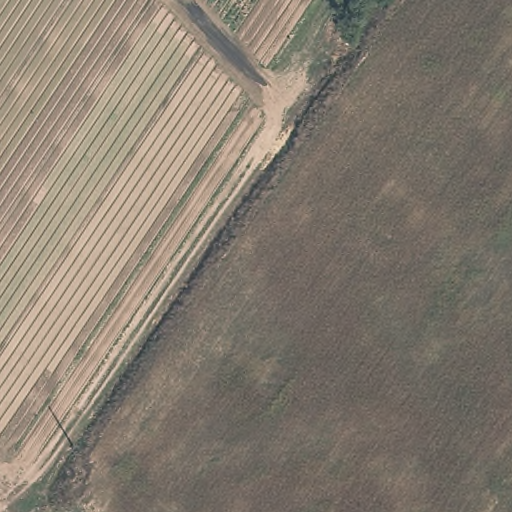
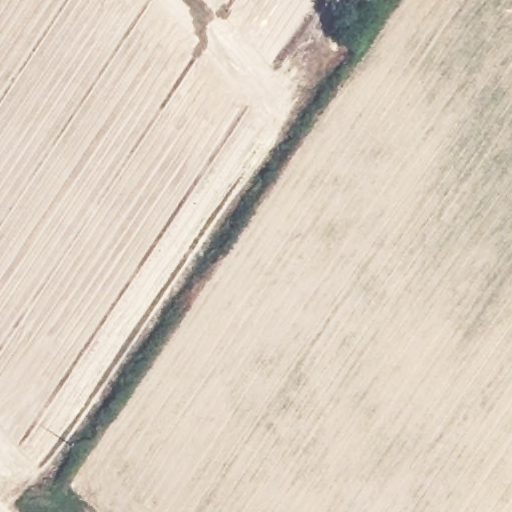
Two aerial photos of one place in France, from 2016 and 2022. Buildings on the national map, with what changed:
[]

